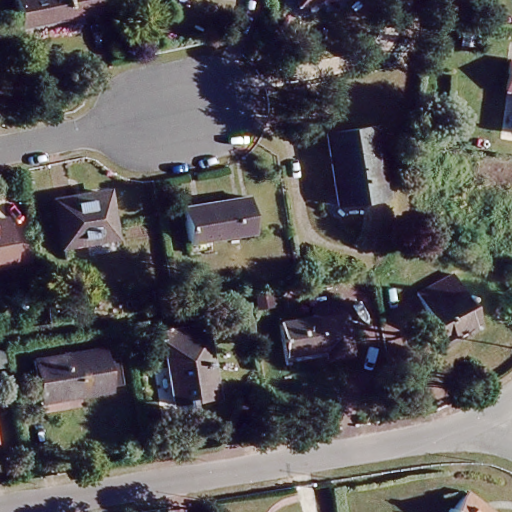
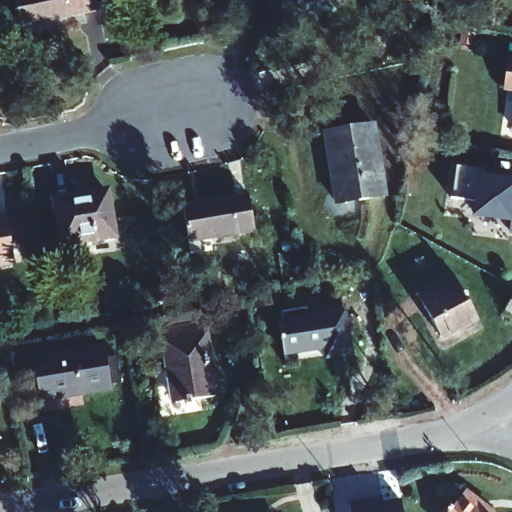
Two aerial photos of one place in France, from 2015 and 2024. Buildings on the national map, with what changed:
unchanged [(97,0),(99,10),(22,26),(15,0),(97,0)]
unchanged [(169,0),(172,0),(170,1),(169,0)]
unchanged [(512,65),(512,88),(510,88),(512,65)]
unchanged [(376,126),(385,198),(338,203),(329,131),(376,126)]
new [(479,201),(452,197),(457,164),(484,168),(483,178),(512,182),(512,218),(477,214),(479,201)]
unchanged [(106,192),(115,235),(64,244),(56,201),(106,192)]
unchanged [(250,196),(256,230),(190,241),(184,207),(250,196)]
unchanged [(9,221),(17,268),(0,271),(0,222),(9,221)]
new [(512,221),(512,229),(511,229),(512,221)]
unchanged [(478,316),(442,337),(417,293),(453,273),(478,316)]
unchanged [(512,301),(512,313),(508,311),(512,301)]
unchanged [(350,357),(328,361),(326,351),(284,358),(279,329),(314,323),(312,308),(341,304),(350,357)]
unchanged [(202,323),(214,398),(175,404),(163,329),(202,323)]
unchanged [(102,349),(110,389),(41,400),(34,361),(102,349)]
unchanged [(490,509),(488,512),(460,512),(473,496),(490,509)]
new [(349,503),(382,498),(383,502),(401,499),(403,512),(350,512),(349,503)]

